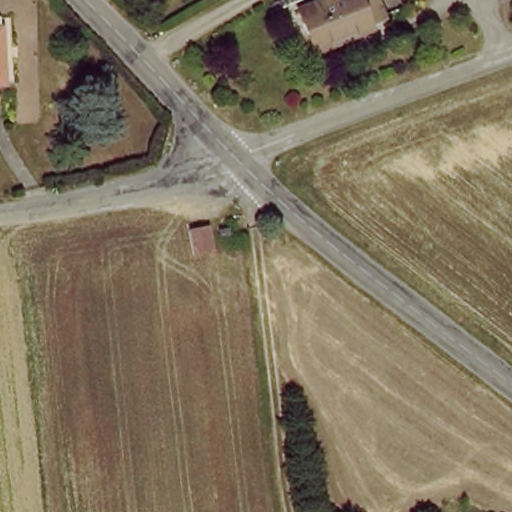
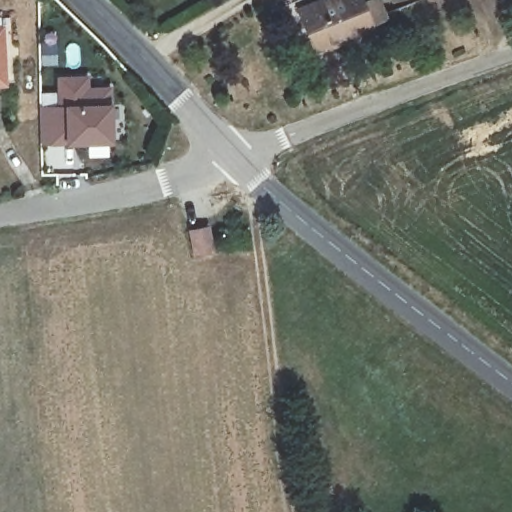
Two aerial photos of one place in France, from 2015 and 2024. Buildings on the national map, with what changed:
unchanged [(354,46),(351,41),(313,50),(301,10),(339,0),(364,0),(374,40),(354,46)]
unchanged [(0,23),(3,23),(8,76),(0,77),(0,23)]
new [(55,105),(57,76),(89,76),(89,88),(111,87),(110,102),(112,143),(64,145),(39,145),(39,107),(55,105)]
unchanged [(196,260),(193,235),(214,233),(216,257),(216,258),(196,260)]

